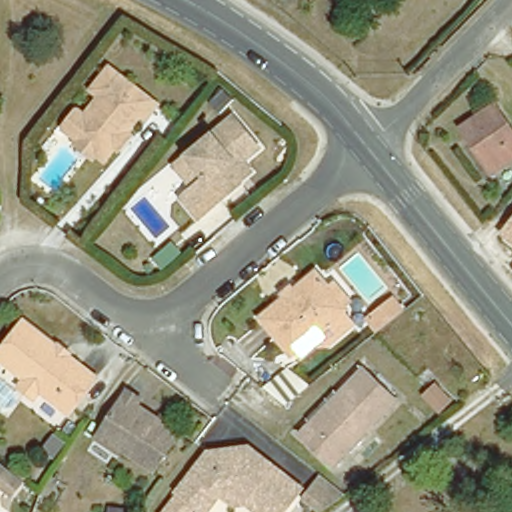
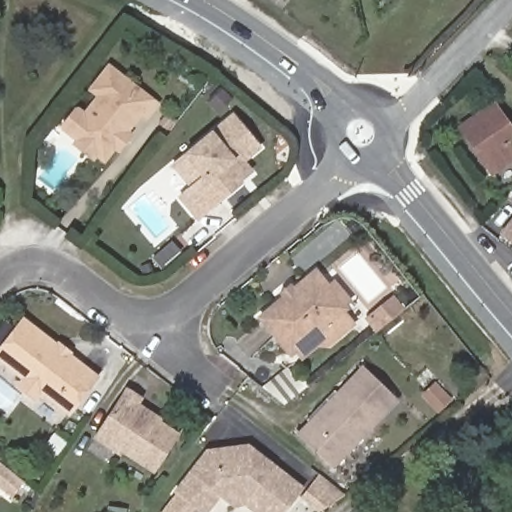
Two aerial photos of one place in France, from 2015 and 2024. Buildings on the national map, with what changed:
unchanged [(80,139),(69,130),(62,125),(76,108),(83,114),(100,93),(91,86),(109,65),(155,101),(144,115),(139,111),(123,130),(128,134),(118,145),(114,143),(103,157),(93,149),(87,151),(79,144),(80,139)]
unchanged [(457,121),(490,99),(512,132),(512,152),(487,169),(457,121)]
unchanged [(244,169),(246,170),(202,208),(184,187),(197,175),(178,154),(190,144),(237,105),(263,136),(247,150),(249,154),(255,160),(244,169)]
unchanged [(512,211),(512,238),(499,228),(512,211)]
unchanged [(295,362),(289,354),(259,319),(316,272),(326,284),(333,278),(353,301),(345,308),(342,310),(352,323),(327,344),(314,346),(295,362)]
unchanged [(405,308),(377,330),(368,318),(395,296),(405,308)]
unchanged [(20,379),(26,370),(0,350),(0,345),(25,313),(58,339),(58,337),(72,347),(69,348),(96,369),(69,404),(41,382),(35,390),(20,379)]
unchanged [(315,417),(365,366),(397,398),(334,462),(308,435),(302,429),(315,417)]
unchanged [(438,382),(454,402),(441,412),(426,392),(438,382)]
unchanged [(152,469),(121,448),(119,452),(95,436),(127,389),(139,397),(135,403),(149,412),(148,414),(157,419),(176,433),(152,469)]
unchanged [(228,504),(217,494),(203,512),(198,512),(194,509),(192,512),(167,512),(179,497),(173,492),(205,451),(225,449),(234,447),(246,446),(300,488),(282,512),(257,512),(244,503),(228,504)]
unchanged [(24,474),(20,481),(18,479),(6,494),(0,490),(0,465),(9,473),(14,467),(24,474)]
unchanged [(321,472),(344,489),(333,502),(327,509),(325,507),(305,492),(321,472)]

